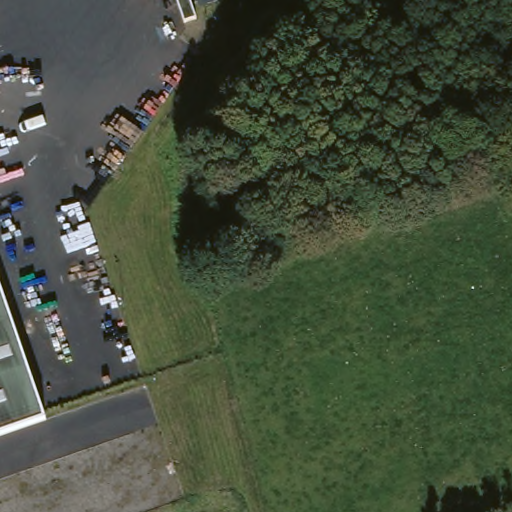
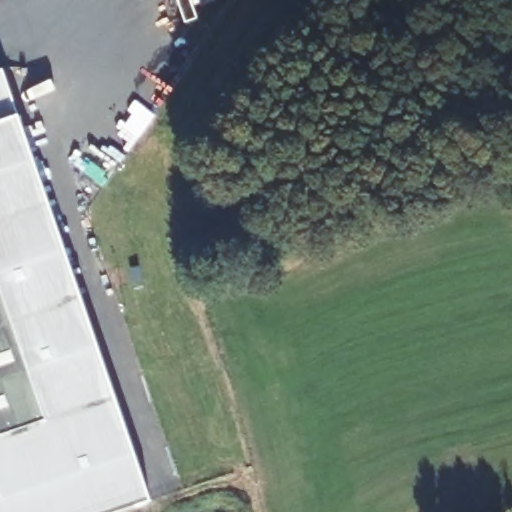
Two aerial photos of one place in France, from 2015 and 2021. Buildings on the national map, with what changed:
new [(12,433),(46,422),(0,285),(0,121),(18,115),(150,498),(110,512),(0,512),(0,437),(12,433)]
unchanged [(46,422),(12,433),(0,437),(0,285),(46,422)]

